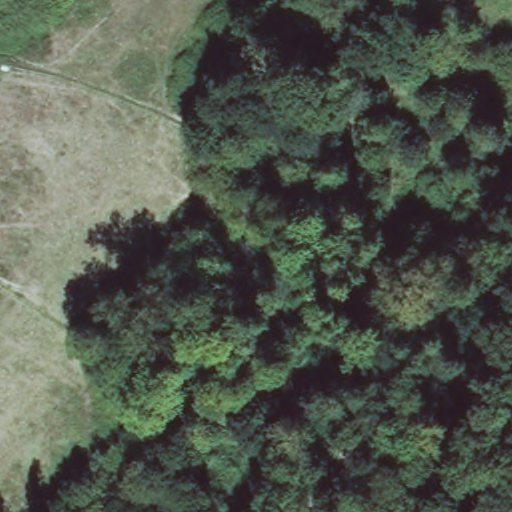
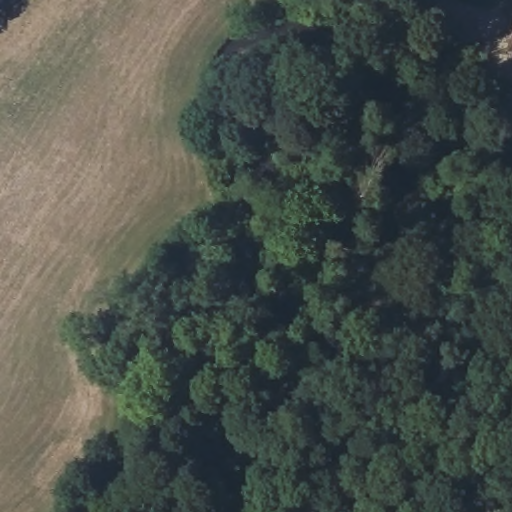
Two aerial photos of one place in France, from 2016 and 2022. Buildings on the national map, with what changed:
unchanged [(512,132),(512,146),(499,138),(508,130),(512,132)]

